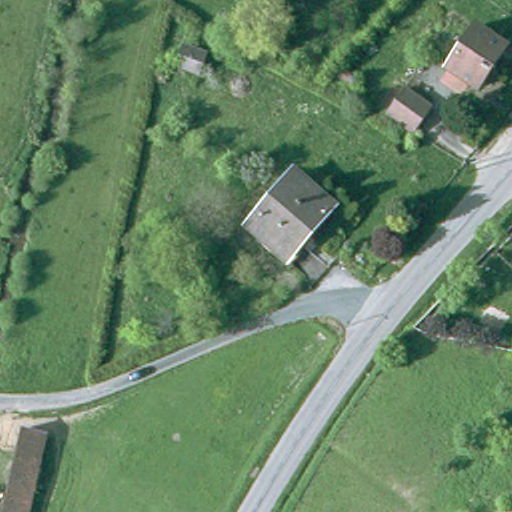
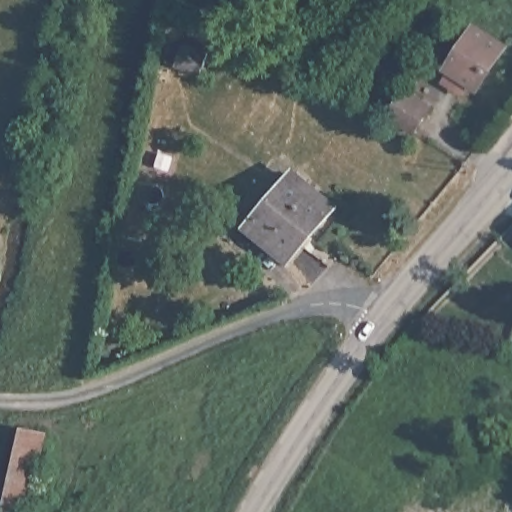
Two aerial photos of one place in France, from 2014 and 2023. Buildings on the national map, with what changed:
unchanged [(441,66),(468,26),(496,45),(470,85),(441,66)]
unchanged [(185,40),(208,49),(201,68),(177,59),(185,40)]
unchanged [(378,110),(395,86),(420,104),(402,128),(378,110)]
unchanged [(242,217),(291,170),(327,207),(279,255),(242,217)]
unchanged [(11,422),(41,433),(23,512),(0,512),(0,477),(11,422)]

